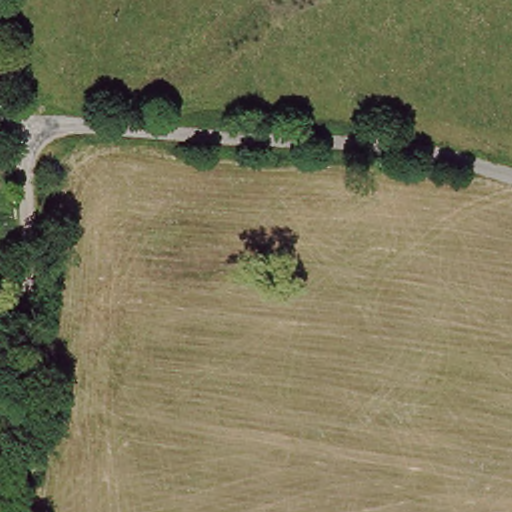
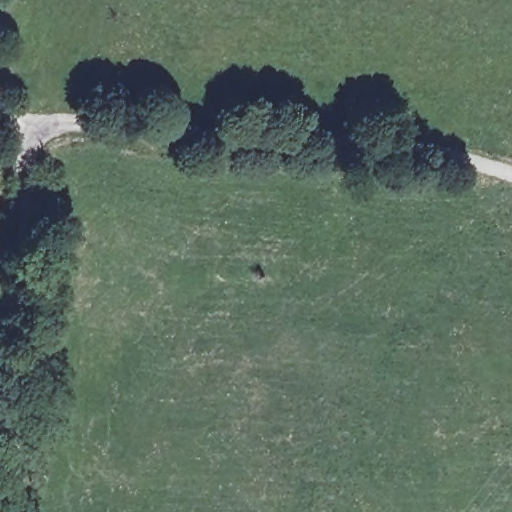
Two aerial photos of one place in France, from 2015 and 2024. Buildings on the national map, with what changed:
unchanged [(1,132),(10,160),(0,163),(0,132),(1,132)]

